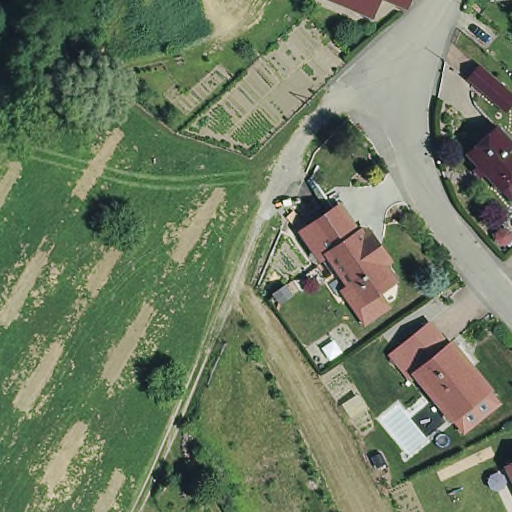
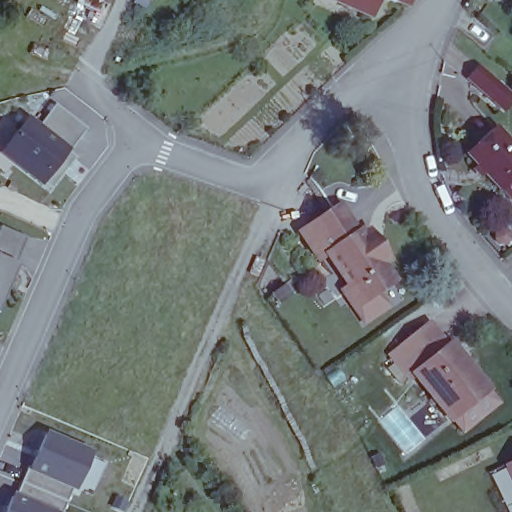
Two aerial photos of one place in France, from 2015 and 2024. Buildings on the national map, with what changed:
unchanged [(373,14),(339,0),(379,0),(373,14)]
unchanged [(407,5),(394,0),(409,0),(407,5)]
unchanged [(490,106),(466,79),(481,65),(504,88),(490,106)]
new [(69,150),(76,156),(48,193),(0,157),(0,151),(26,116),(39,126),(54,105),(85,129),(69,150)]
unchanged [(501,185),(468,150),(497,122),(512,138),(512,196),(502,185),(501,185)]
unchanged [(357,317),(349,305),(337,288),(314,255),(322,249),(304,223),(333,203),(351,230),(354,228),(357,232),(362,229),(371,242),(382,257),(377,261),(388,277),(371,288),(380,301),(357,317)]
new [(13,266),(17,267),(0,307),(0,228),(25,239),(13,266)]
unchanged [(429,319),(448,342),(451,340),(488,384),(452,414),(416,369),(410,373),(391,351),(429,319)]
new [(70,503),(67,502),(23,482),(44,431),(93,452),(70,503)]
unchanged [(512,462),(512,483),(504,467),(512,462)]
new [(63,512),(3,512),(11,492),(18,494),(23,482),(67,502),(63,512)]

